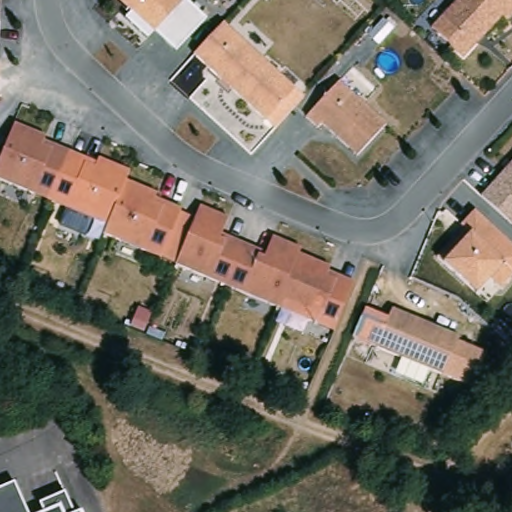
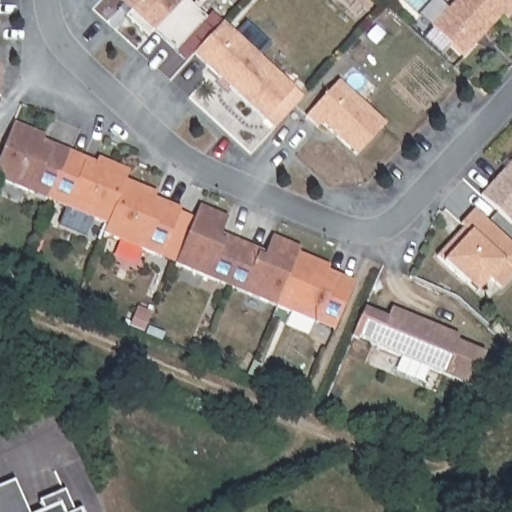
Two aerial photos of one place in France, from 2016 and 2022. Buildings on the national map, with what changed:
unchanged [(177,49),(157,30),(149,37),(123,15),(130,7),(121,0),(193,0),(209,14),(177,49)]
unchanged [(512,21),(502,14),(468,57),(433,23),(452,0),(512,0),(512,20),(512,21)]
unchanged [(296,81),(265,115),(193,52),(225,20),(296,81)]
unchanged [(388,119),(359,153),(322,120),(317,125),(306,113),(338,77),(388,119)]
unchanged [(44,138),(97,159),(100,152),(132,167),(130,178),(157,187),(157,197),(182,206),(163,254),(103,232),(107,221),(0,180),(0,156),(15,121),(46,129),(44,138)]
unchanged [(482,194),(512,160),(512,219),(482,194)]
unchanged [(231,215),(225,231),(267,249),(274,230),(304,245),(302,250),(356,281),(338,331),(175,261),(199,201),(231,215)]
unchanged [(512,242),(512,281),(508,287),(491,277),(476,291),(441,260),(473,226),(462,219),(473,207),(512,242)]
unchanged [(461,333),(446,373),(376,345),(392,304),(461,333)]
unchanged [(31,512),(0,512),(0,486),(16,479),(31,512)]
unchanged [(46,509),(42,501),(67,489),(77,511),(82,508),(84,512),(39,512),(46,509)]

